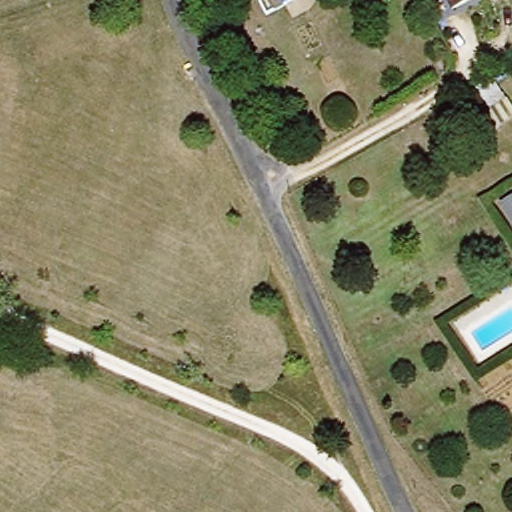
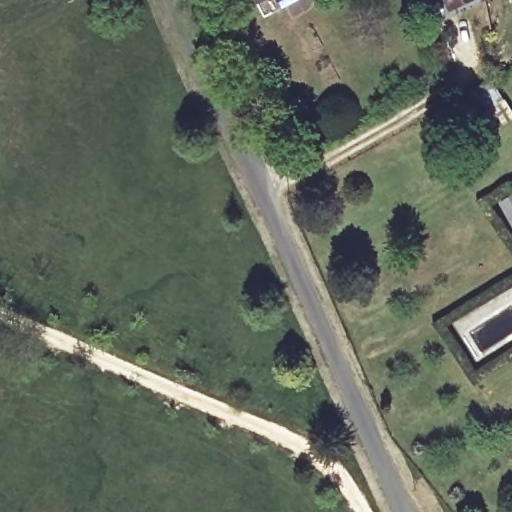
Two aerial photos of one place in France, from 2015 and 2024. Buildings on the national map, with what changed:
unchanged [(267,0),(305,0),(275,15),(267,0)]
unchanged [(458,0),(478,0),(462,7),(458,0)]
unchanged [(474,120),(505,98),(512,109),(512,115),(483,134),(474,120)]
unchanged [(512,194),(512,219),(502,200),(512,194)]

